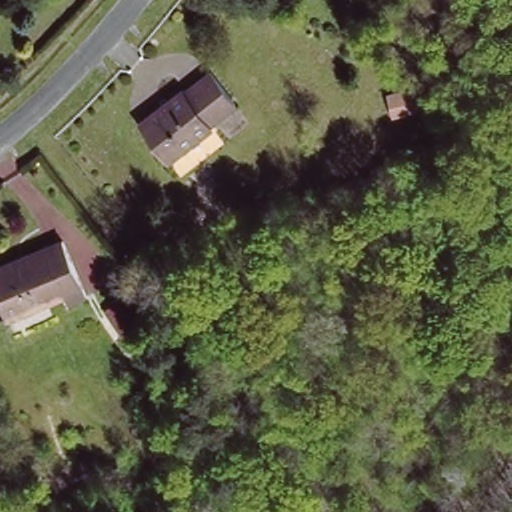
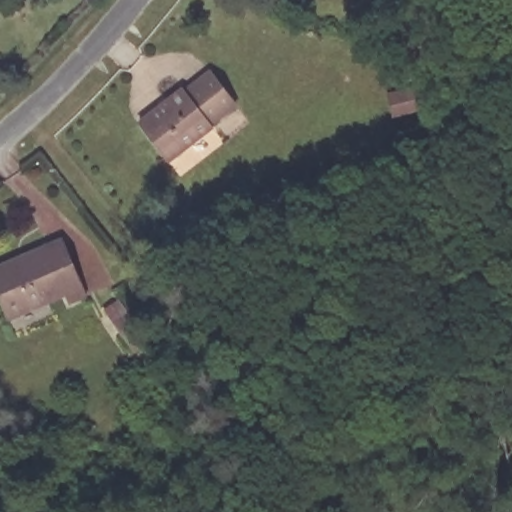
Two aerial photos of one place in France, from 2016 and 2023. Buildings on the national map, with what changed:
unchanged [(236,107),(211,125),(213,128),(168,162),(139,125),(181,94),(182,95),(211,74),(236,107)]
unchanged [(387,97),(411,90),(417,110),(393,116),(387,97)]
unchanged [(0,295),(0,281),(34,265),(31,260),(64,245),(89,300),(74,307),(69,296),(13,322),(0,295)]
unchanged [(125,340),(106,312),(118,305),(137,332),(125,340)]

